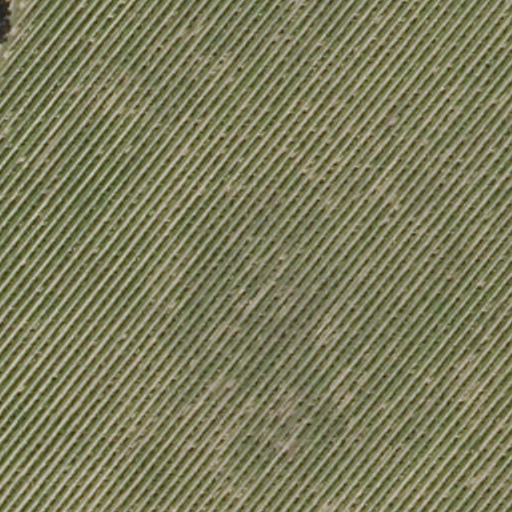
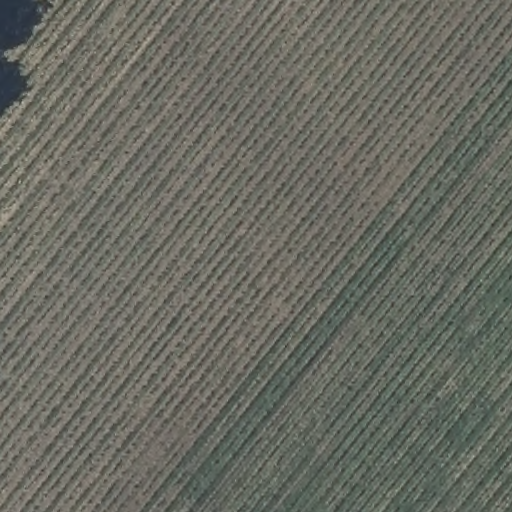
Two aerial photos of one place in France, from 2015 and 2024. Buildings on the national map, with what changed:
[]

